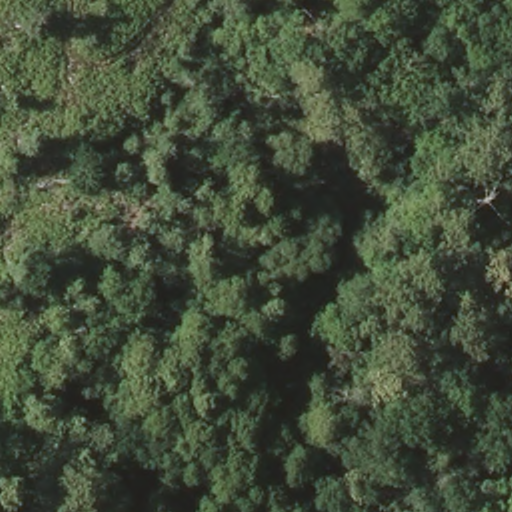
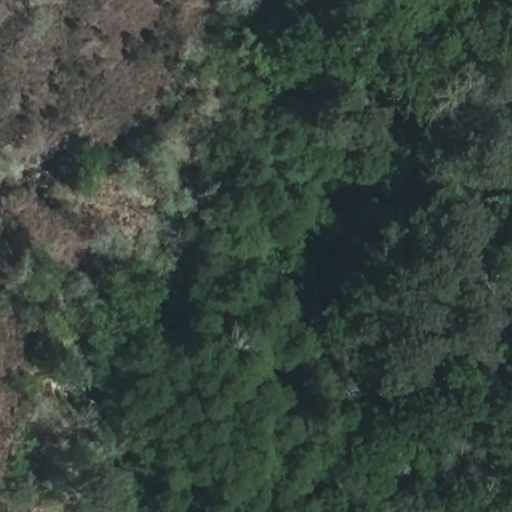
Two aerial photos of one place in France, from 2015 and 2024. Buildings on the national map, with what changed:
[]

